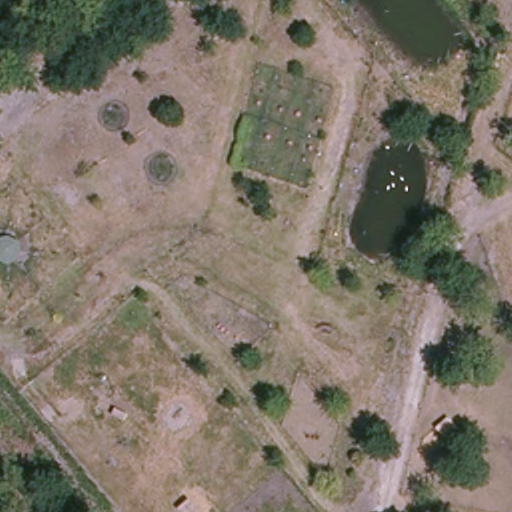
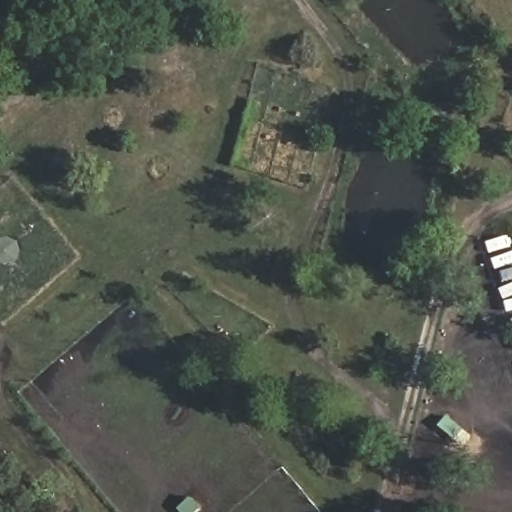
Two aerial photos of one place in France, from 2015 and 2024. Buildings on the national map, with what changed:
unchanged [(20,240),(23,252),(17,264),(4,267),(0,265),(0,238),(9,235),(20,240)]

